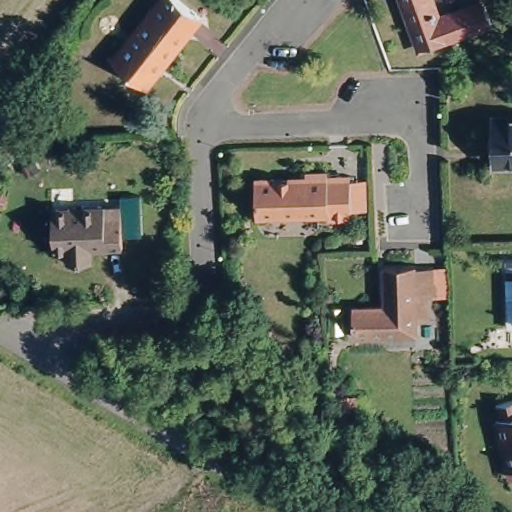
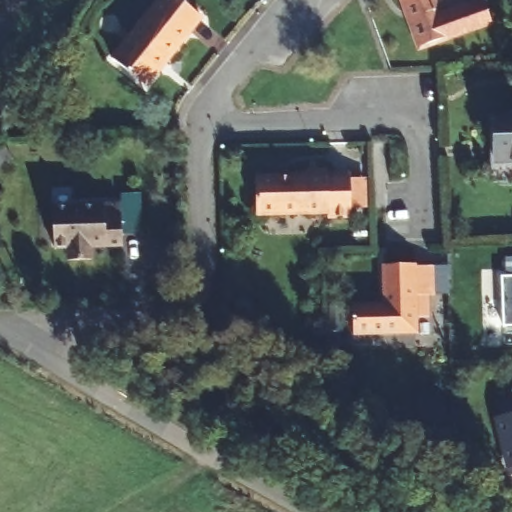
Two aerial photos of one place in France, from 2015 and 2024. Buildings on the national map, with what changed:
unchanged [(111,59),(159,0),(181,0),(200,15),(143,85),(111,59)]
unchanged [(442,16),(487,0),(489,0),(496,22),(425,47),(407,0),(437,0),(442,16)]
unchanged [(512,160),(495,160),(495,115),(512,115),(512,160)]
unchanged [(253,176),(305,175),(305,170),(326,170),(326,175),(348,175),(349,216),(327,216),(327,212),(255,214),(253,176)]
unchanged [(51,205),(120,204),(121,245),(102,246),(103,240),(89,241),(90,260),(67,260),(66,247),(52,247),(51,205)]
unchanged [(413,268),(413,270),(430,270),(432,298),(426,298),(427,321),(415,321),(415,336),(351,339),(350,310),(382,309),(381,269),(413,268)]
unchanged [(509,271),(512,271),(512,321),(511,321),(509,271)]
unchanged [(495,407),(512,403),(512,479),(510,480),(496,421),(498,421),(495,407)]

